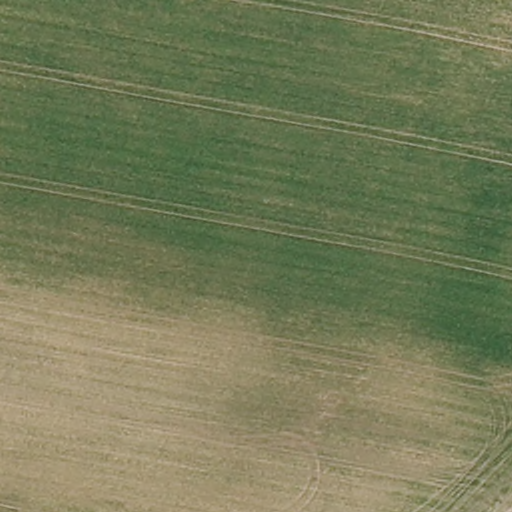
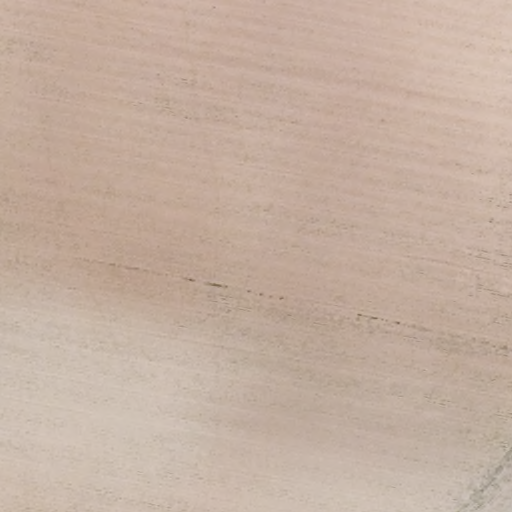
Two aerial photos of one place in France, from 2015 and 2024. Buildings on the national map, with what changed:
[]

